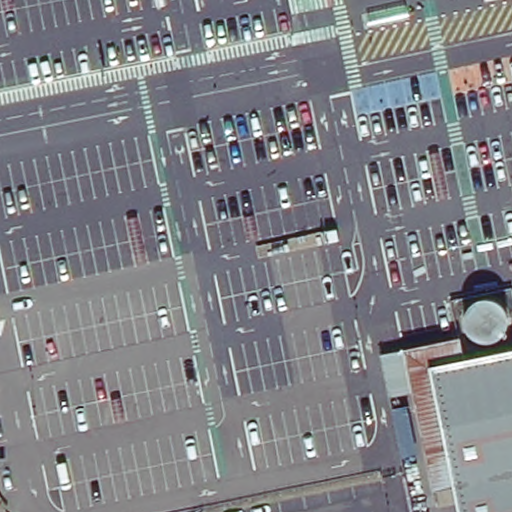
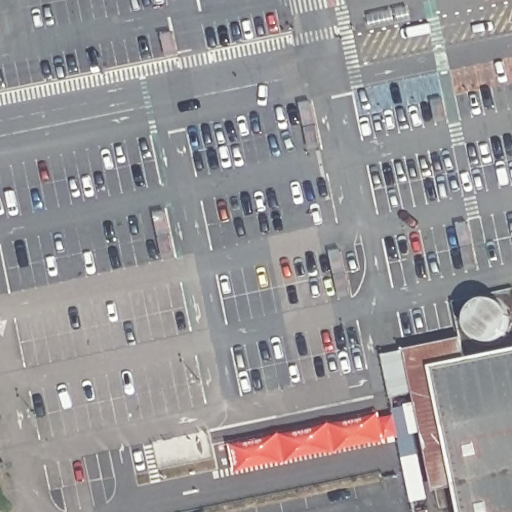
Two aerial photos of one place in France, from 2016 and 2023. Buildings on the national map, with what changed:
unchanged [(433,489),(405,350),(460,339),(465,363),(435,369),(459,484),(433,489)]
unchanged [(459,484),(435,369),(465,363),(512,354),(512,512),(464,512),(459,484)]

